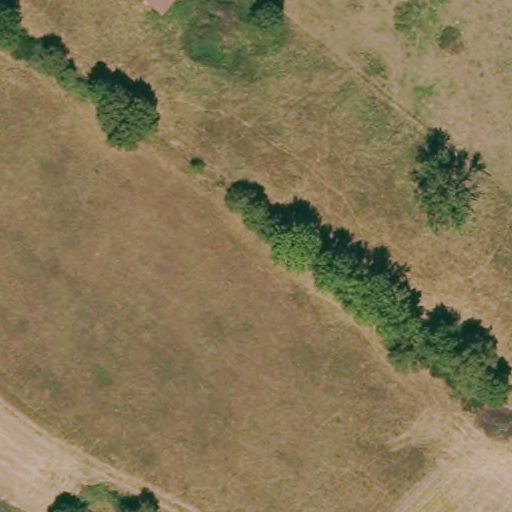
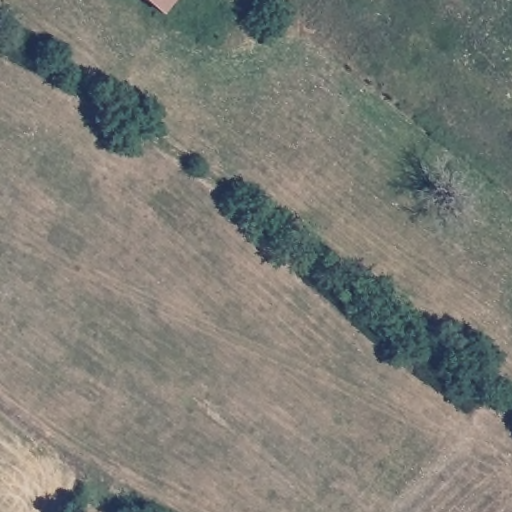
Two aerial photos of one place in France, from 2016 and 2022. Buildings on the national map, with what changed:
unchanged [(138,0),(176,0),(162,18),(138,0)]

